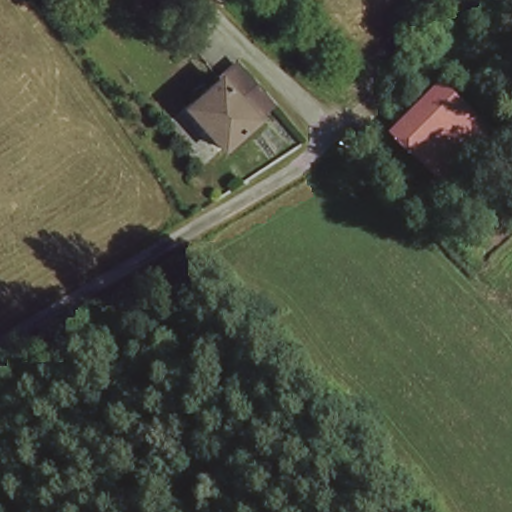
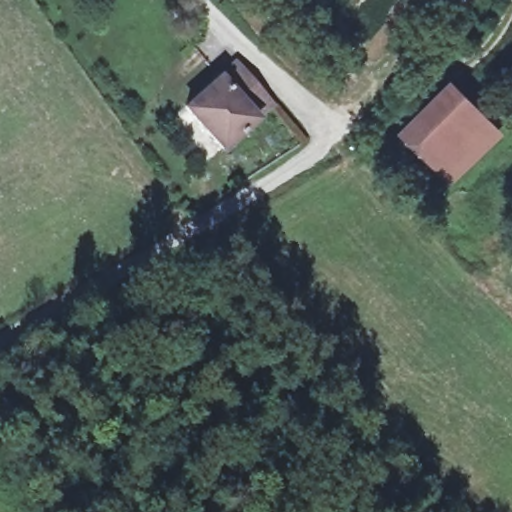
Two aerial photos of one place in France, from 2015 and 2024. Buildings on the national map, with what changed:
unchanged [(422,3),(435,15),(421,30),(408,19),(422,3)]
unchanged [(230,158),(180,98),(216,70),(233,57),(280,116),(263,130),(230,158)]
unchanged [(407,109),(423,123),(445,99),(450,104),(461,91),(482,110),(470,123),(489,139),(448,184),(389,130),(407,109)]

